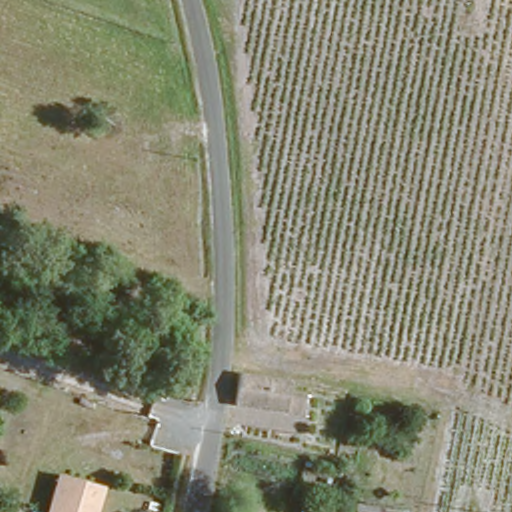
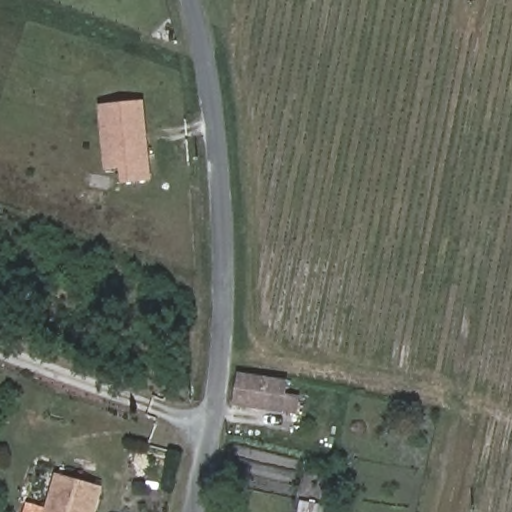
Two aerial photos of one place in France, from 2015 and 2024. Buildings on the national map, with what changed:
new [(97,105),(144,101),(152,181),(121,184),(120,170),(103,171),(97,105)]
unchanged [(293,379),(287,409),(230,397),(236,367),(293,379)]
unchanged [(100,479),(93,512),(45,512),(54,469),(100,479)]
unchanged [(322,507),(322,512),(296,512),(298,503),(322,507)]

